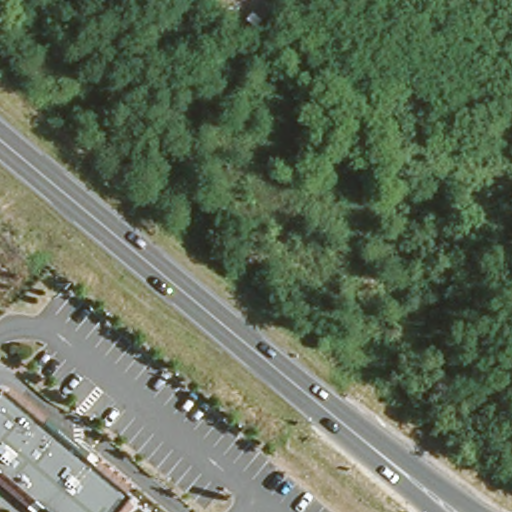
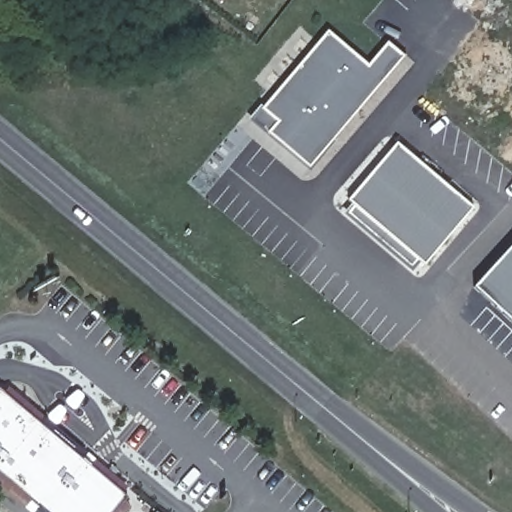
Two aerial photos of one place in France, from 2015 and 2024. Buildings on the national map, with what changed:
new [(263,109),(326,33),(368,68),(388,43),(403,56),(310,169),(268,135),(249,119),(263,109)]
new [(345,221),(351,213),(345,207),(392,149),(470,213),(422,270),(415,265),(408,273),(345,221)]
new [(473,293),(512,248),(512,326),(473,293)]
unchanged [(0,475),(0,392),(126,498),(115,512),(45,512),(0,475)]

